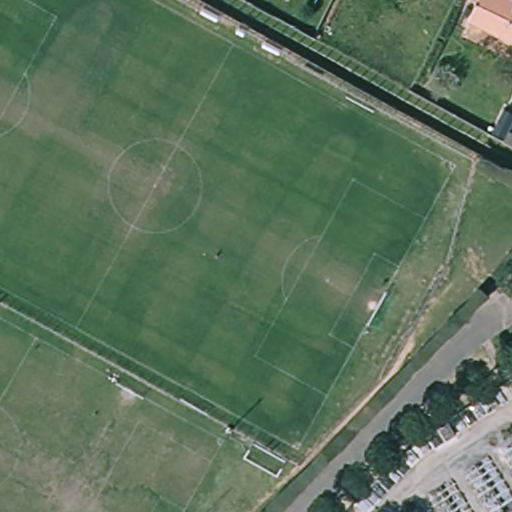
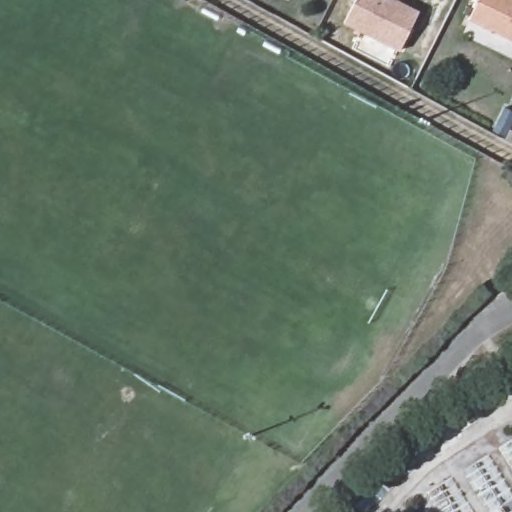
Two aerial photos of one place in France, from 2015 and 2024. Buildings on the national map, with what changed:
new [(389,0),(417,14),(398,51),(343,24),(355,0),(389,0)]
unchanged [(477,3),(472,0),(512,0),(512,41),(469,20),(477,3)]
unchanged [(489,135),(494,126),(507,133),(512,135),(512,147),(503,143),(489,135)]

